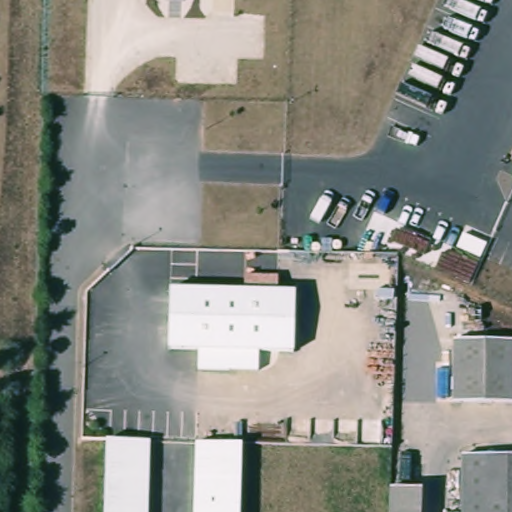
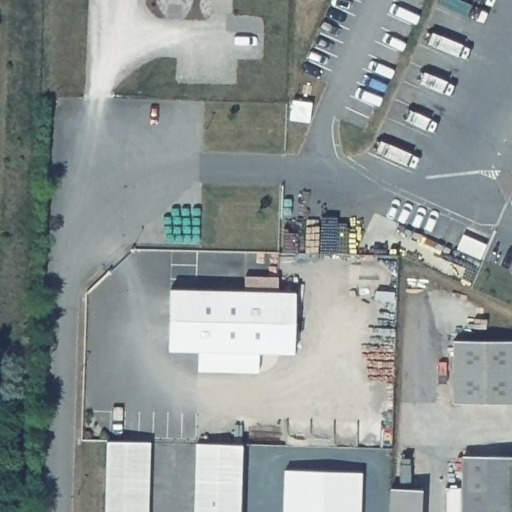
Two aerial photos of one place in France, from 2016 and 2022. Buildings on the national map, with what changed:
unchanged [(199,349),(169,347),(170,287),(245,289),(245,275),(277,275),(276,291),(295,292),(295,351),(259,350),(257,371),(198,370),(199,349)]
unchanged [(512,339),(512,405),(450,404),(450,339),(512,339)]
unchanged [(150,439),(148,512),(103,512),(105,441),(150,439)]
unchanged [(240,443),(239,512),(193,512),(195,443),(240,443)]
unchanged [(457,459),(512,459),(512,512),(457,512),(457,459)]
new [(285,470),(361,472),(360,512),(283,512),(285,470)]
unchanged [(387,491),(418,492),(418,512),(386,512),(387,491)]

